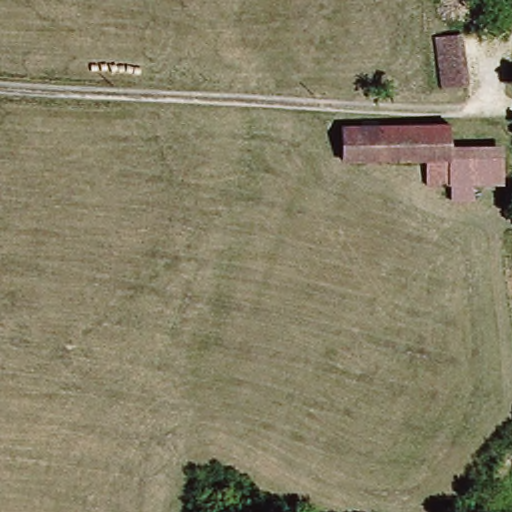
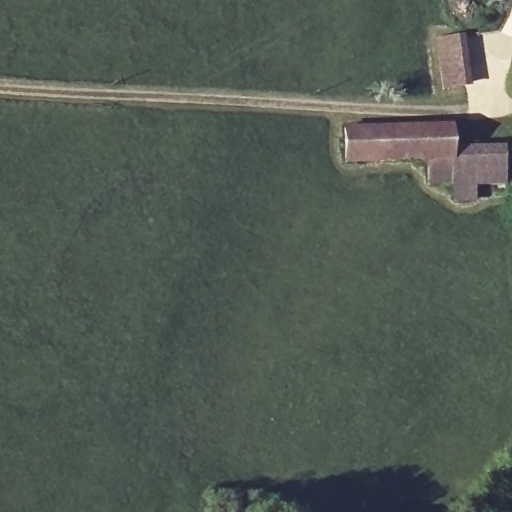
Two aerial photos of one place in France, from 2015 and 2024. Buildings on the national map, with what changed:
unchanged [(462,89),(441,89),(442,38),(463,39),(462,89)]
unchanged [(427,187),(426,160),(345,162),(345,128),(450,125),(451,155),(450,187),(427,187)]
unchanged [(454,207),(455,187),(450,187),(451,155),(501,154),(500,186),(474,186),(475,206),(454,207)]

